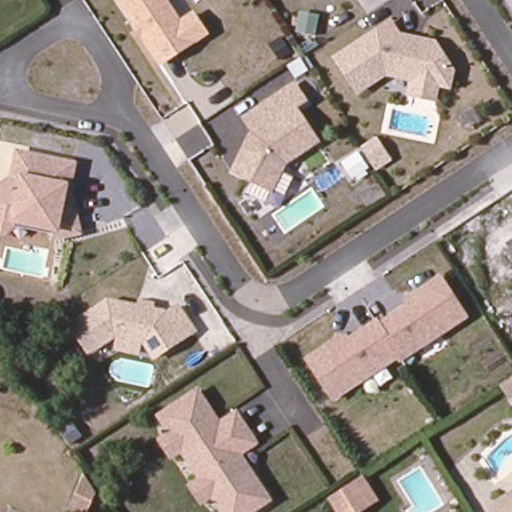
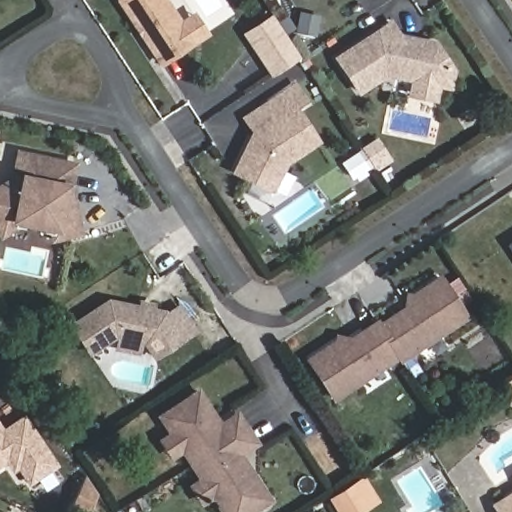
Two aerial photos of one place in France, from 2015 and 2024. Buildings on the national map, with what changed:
unchanged [(113,0),(168,0),(178,16),(190,8),(208,31),(157,65),(113,0)]
new [(268,75),(245,41),(240,33),(268,14),(273,23),(296,56),(268,75)]
unchanged [(331,60),(391,19),(399,33),(433,41),(455,72),(453,89),(440,89),(437,103),(407,97),(409,83),(386,78),(355,94),(331,60)]
unchanged [(290,159),(275,189),(232,165),(249,131),(238,116),(294,80),(308,100),(299,105),(319,139),(290,159)]
unchanged [(79,233),(49,238),(46,229),(20,224),(0,234),(0,179),(6,175),(13,148),(75,163),(68,183),(65,197),(79,233)]
unchanged [(503,246),(512,241),(512,260),(503,246)]
unchanged [(340,331),(348,338),(402,305),(402,294),(439,274),(467,317),(333,403),(300,357),(340,331)]
unchanged [(153,359),(141,346),(141,355),(111,350),(112,339),(86,357),(66,324),(107,298),(134,303),(136,299),(156,303),(155,307),(165,308),(181,300),(197,330),(153,359)]
unchanged [(256,441),(240,452),(270,495),(250,512),(220,512),(210,501),(201,505),(185,482),(194,476),(180,453),(172,457),(157,437),(163,432),(151,414),(196,387),(215,419),(235,409),(256,441)]
new [(17,469),(13,473),(5,462),(0,465),(0,423),(3,428),(24,414),(58,466),(28,485),(17,469)]
unchanged [(352,481),(357,477),(359,476),(373,499),(367,503),(354,512),(335,512),(326,498),(352,481)]
new [(82,480),(99,489),(87,512),(79,512),(68,506),(82,480)]
unchanged [(497,512),(493,504),(512,493),(512,512),(497,512)]

